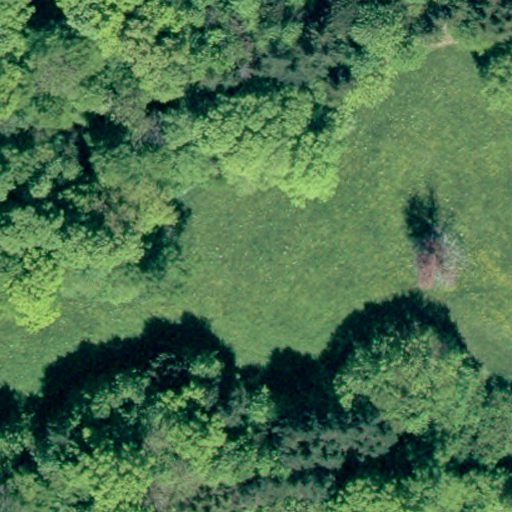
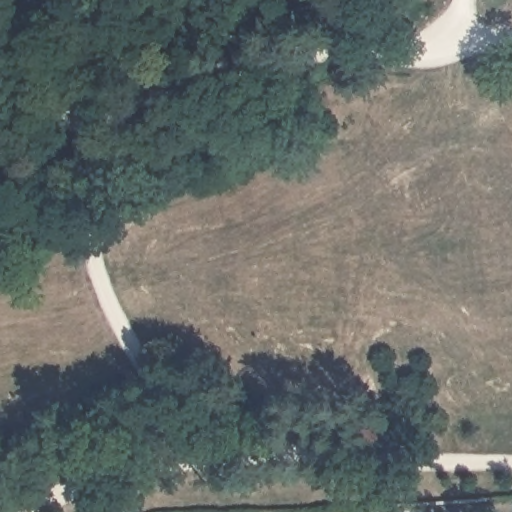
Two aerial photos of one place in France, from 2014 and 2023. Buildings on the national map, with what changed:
[]

